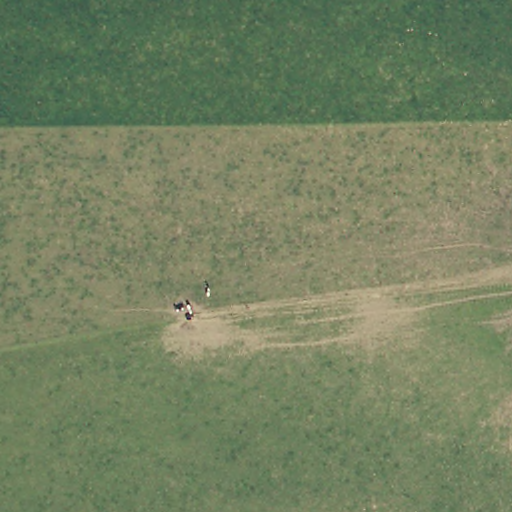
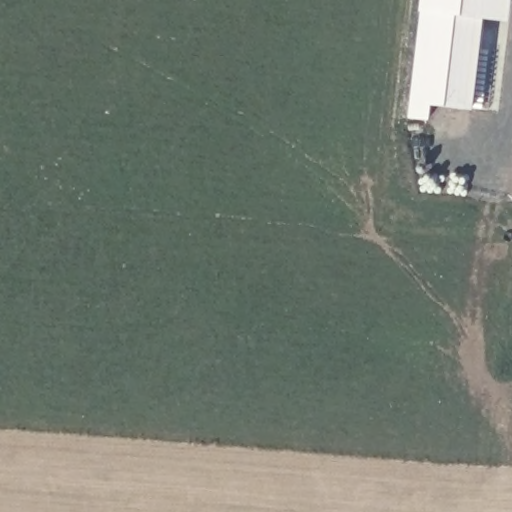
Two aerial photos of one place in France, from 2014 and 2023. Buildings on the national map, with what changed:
new [(423,0),(510,0),(507,20),(421,12),(423,0)]
new [(421,12),(481,18),(472,108),(430,103),(428,121),(410,119),(412,101),(421,12)]

